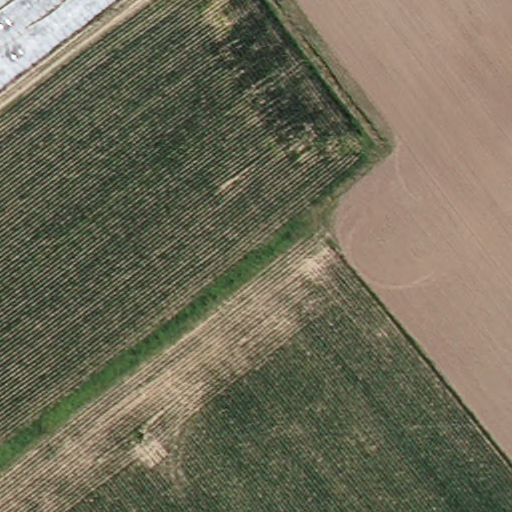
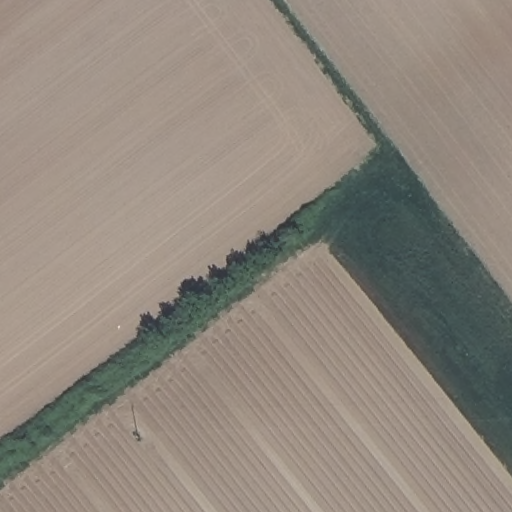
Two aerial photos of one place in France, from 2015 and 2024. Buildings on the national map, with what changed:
new [(0,0),(114,0),(0,86),(0,0)]

